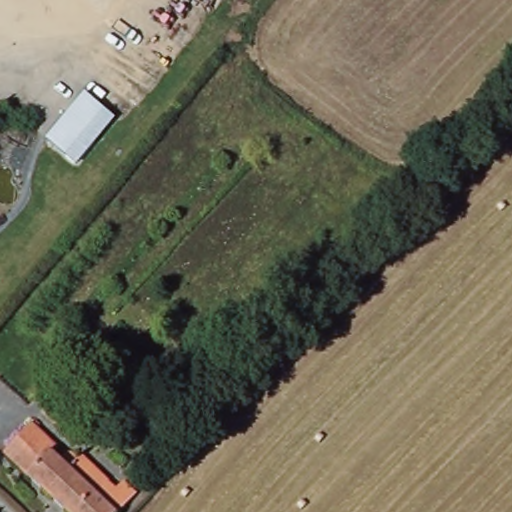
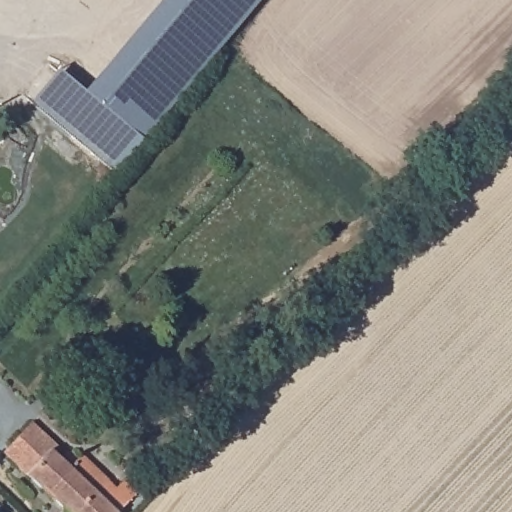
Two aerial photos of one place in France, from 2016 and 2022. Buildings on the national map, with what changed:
new [(33,101),(58,72),(84,93),(161,0),(260,0),(141,140),(114,170),(33,101)]
unchanged [(58,446),(53,451),(60,458),(65,455),(69,454),(73,455),(78,458),(82,453),(118,487),(125,481),(138,494),(122,512),(68,512),(4,452),(32,422),(58,446)]

